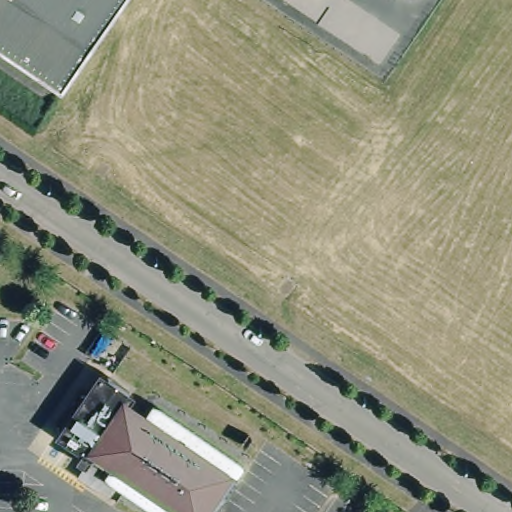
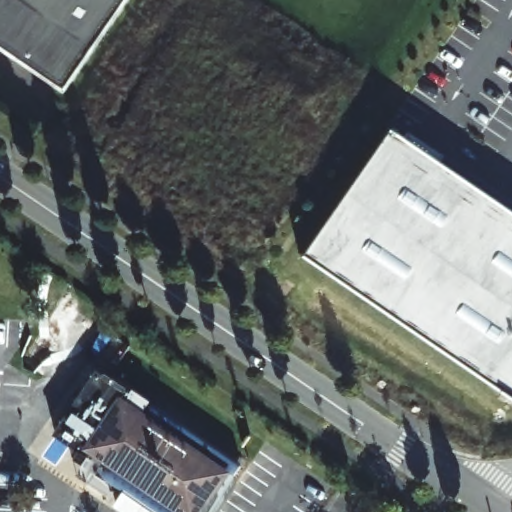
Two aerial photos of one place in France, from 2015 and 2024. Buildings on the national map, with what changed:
unchanged [(0,54),(0,0),(52,0),(5,57),(0,54)]
unchanged [(60,94),(5,57),(52,0),(81,0),(110,22),(60,94)]
unchanged [(110,22),(81,0),(109,0),(118,8),(110,22)]
unchanged [(109,0),(124,0),(118,8),(109,0)]
new [(512,214),(512,399),(300,254),(387,127),(512,214)]
unchanged [(102,375),(137,398),(129,410),(228,477),(205,512),(187,512),(112,461),(107,467),(99,462),(103,455),(100,453),(89,469),(80,463),(85,455),(60,438),(102,375)]

